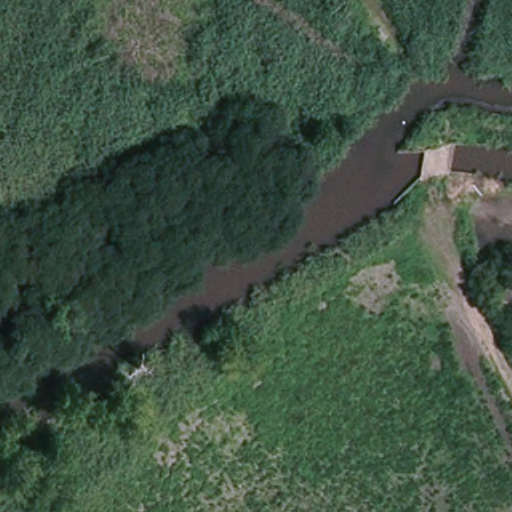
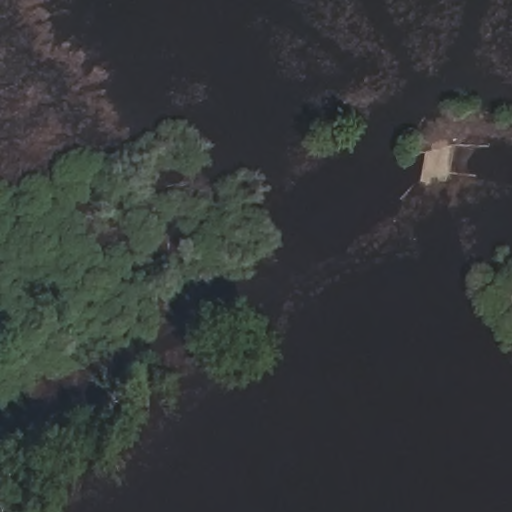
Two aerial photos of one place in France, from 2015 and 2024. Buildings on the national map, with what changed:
unchanged [(512,295),(510,285),(512,284),(512,295)]

